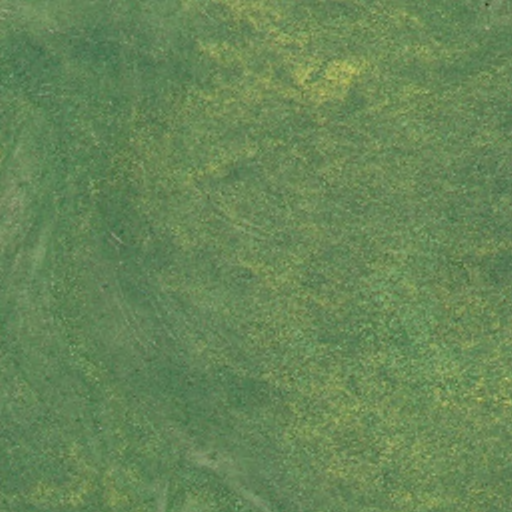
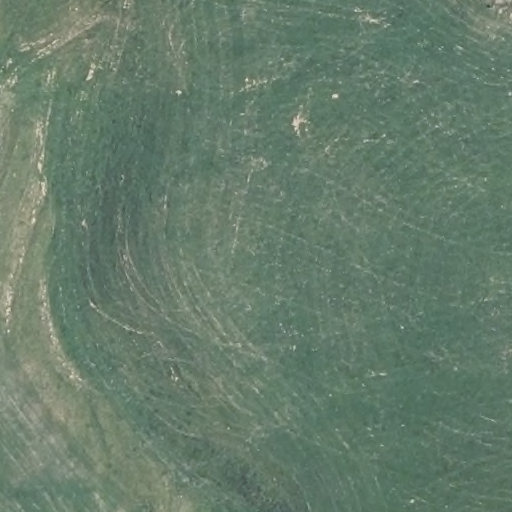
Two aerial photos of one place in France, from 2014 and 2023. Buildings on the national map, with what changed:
[]

